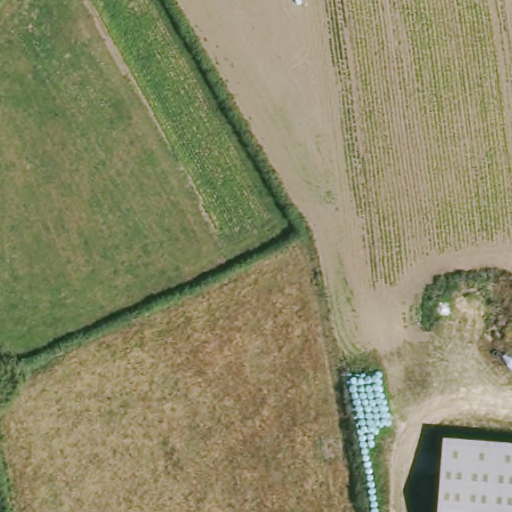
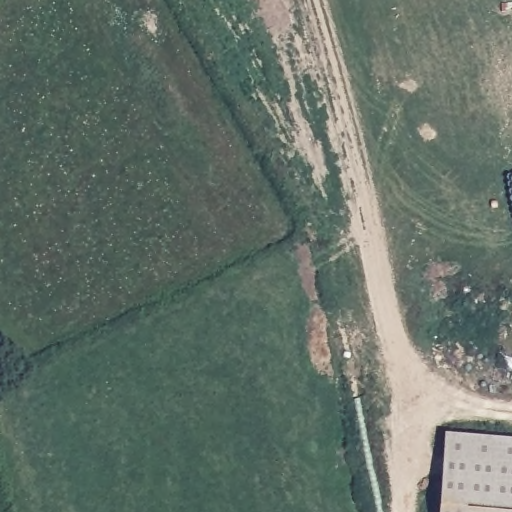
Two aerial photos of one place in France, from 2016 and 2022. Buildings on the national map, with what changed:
unchanged [(512,512),(437,512),(445,433),(512,438),(512,512)]

